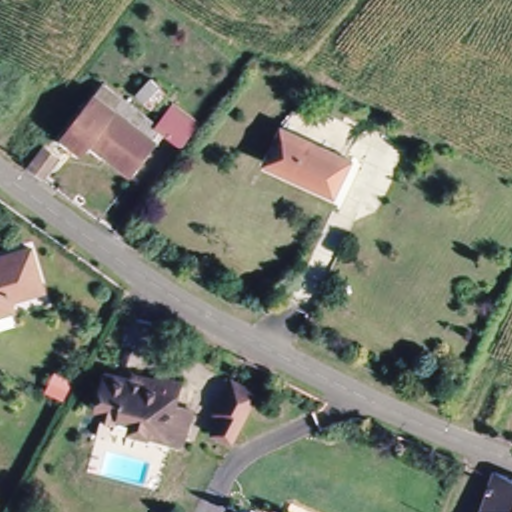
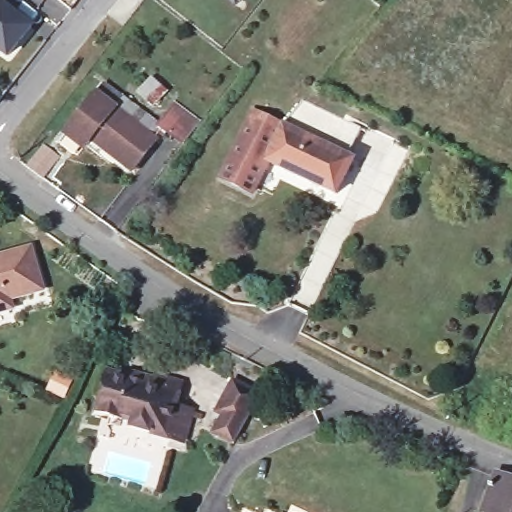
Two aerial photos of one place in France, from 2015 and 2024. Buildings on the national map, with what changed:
new [(12,12),(31,27),(8,57),(0,51),(0,0),(21,0),(12,12)]
new [(236,5),(229,0),(240,0),(236,5)]
unchanged [(167,92),(160,99),(154,93),(146,100),(138,93),(153,79),(167,92)]
unchanged [(120,98),(153,125),(145,136),(151,141),(128,171),(87,140),(79,149),(61,135),(92,95),(111,110),(120,98)]
unchanged [(355,128),(341,156),(347,159),(331,193),(262,160),(279,125),(298,101),(355,128)]
unchanged [(196,124),(179,145),(155,126),(171,105),(196,124)]
new [(218,178),(251,111),(279,125),(262,160),(271,165),(255,197),(218,178)]
unchanged [(42,178),(28,168),(44,147),(58,158),(42,178)]
unchanged [(43,285),(11,294),(13,303),(0,307),(0,252),(31,243),(43,285)]
unchanged [(132,426),(133,420),(97,410),(108,371),(135,380),(138,370),(159,376),(182,383),(175,406),(193,410),(184,441),(132,426)]
unchanged [(235,438),(214,428),(224,410),(217,406),(233,376),(260,390),(235,438)]
unchanged [(512,480),(512,512),(483,512),(495,475),(512,480)]

